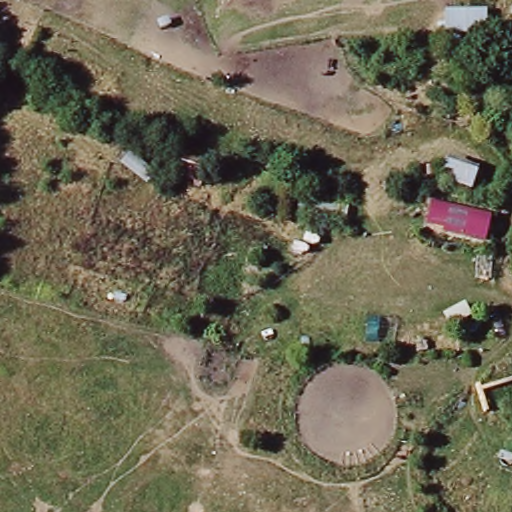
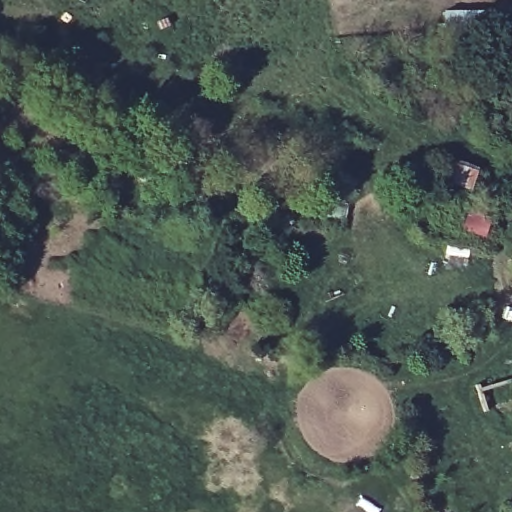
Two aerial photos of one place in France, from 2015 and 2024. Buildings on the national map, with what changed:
unchanged [(484,9),(486,34),(437,35),(437,22),(444,22),(444,9),(484,9)]
unchanged [(207,160),(202,186),(160,176),(166,151),(207,160)]
unchanged [(480,169),(472,192),(439,180),(448,159),(480,169)]

